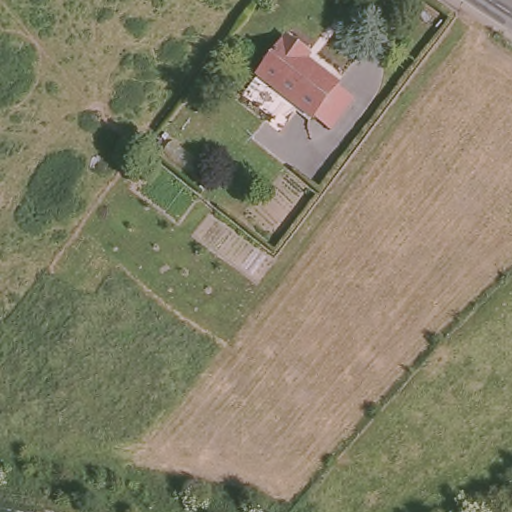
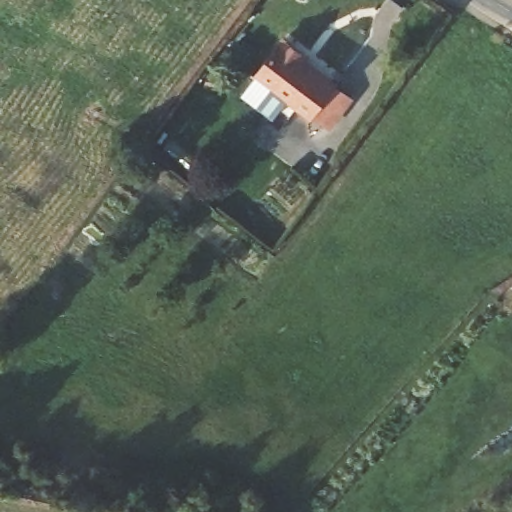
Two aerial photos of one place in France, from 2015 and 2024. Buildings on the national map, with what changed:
unchanged [(318,115),(265,71),(295,39),(317,58),(314,62),(342,85),(318,115)]
unchanged [(231,71),(226,89),(212,85),(217,66),(231,71)]

